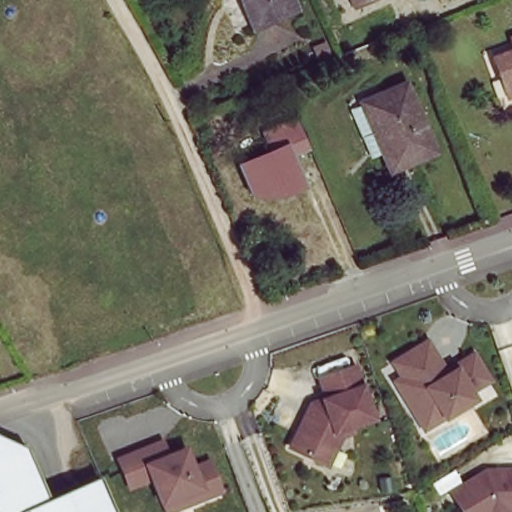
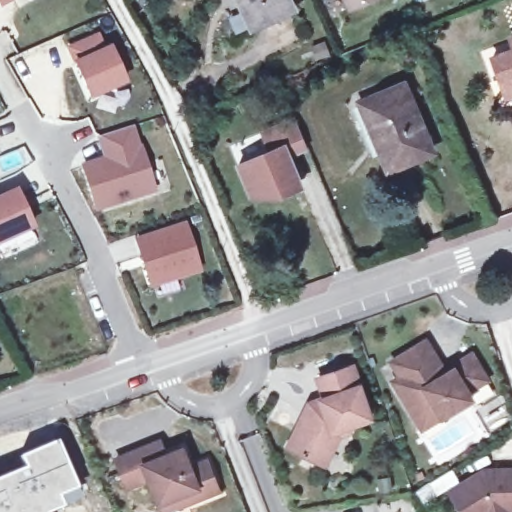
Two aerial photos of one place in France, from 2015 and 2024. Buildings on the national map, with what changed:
new [(0,7),(0,0),(12,0),(0,7)]
unchanged [(299,10),(259,26),(248,0),(295,0),(299,10)]
unchanged [(389,2),(354,17),(346,0),(388,0),(389,2)]
new [(97,36),(104,50),(109,48),(125,81),(91,96),(69,48),(97,36)]
unchanged [(505,100),(492,65),(512,58),(512,98),(505,100)]
unchanged [(410,85),(438,150),(393,168),(366,104),(410,85)]
unchanged [(280,200),(250,200),(235,164),(257,153),(251,136),(295,117),(309,152),(293,158),(305,188),(280,200)]
new [(83,166),(107,158),(100,136),(131,126),(151,191),(97,208),(83,166)]
new [(16,190),(31,226),(0,241),(0,197),(16,190)]
new [(185,225),(199,269),(151,285),(137,240),(185,225)]
unchanged [(420,425),(392,377),(399,373),(390,358),(425,337),(443,367),(471,351),(486,377),(467,388),(471,395),(420,425)]
unchanged [(363,361),(374,413),(338,421),(324,454),(293,441),(312,397),(332,389),(327,369),(363,361)]
demolished [(2,439),(33,455),(53,509),(54,512),(0,512),(0,440),(2,439)]
new [(24,467),(19,456),(57,439),(81,498),(49,512),(0,512),(0,477),(24,467)]
unchanged [(135,449),(141,463),(167,452),(175,470),(191,463),(205,492),(190,499),(186,489),(160,500),(148,476),(126,485),(115,458),(135,449)]
unchanged [(493,507),(483,512),(459,512),(444,488),(480,467),(512,466),(512,507),(493,507)]
demolished [(84,512),(114,500),(120,512),(84,512)]

